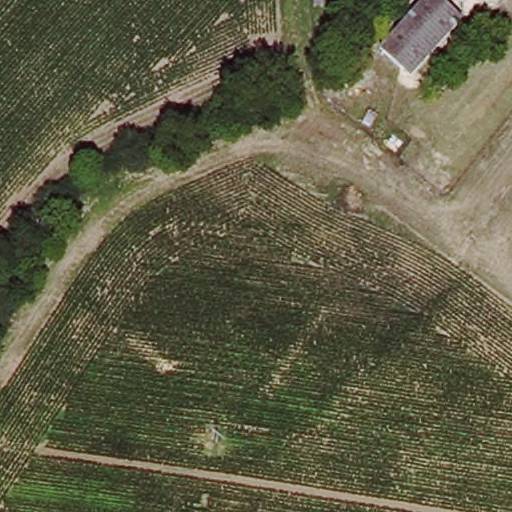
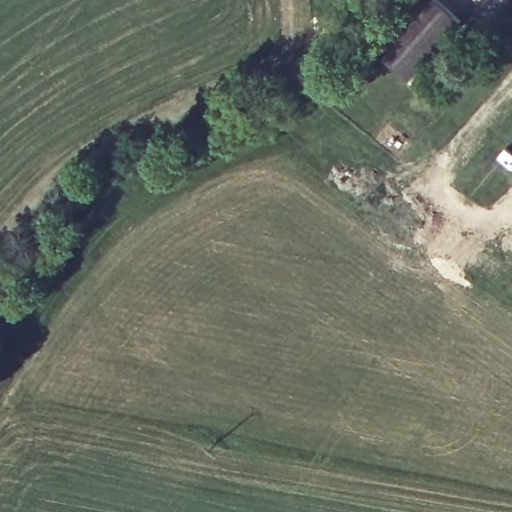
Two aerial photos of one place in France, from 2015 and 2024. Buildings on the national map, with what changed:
unchanged [(431,0),(454,16),(411,79),(379,57),(418,0),(431,0)]

